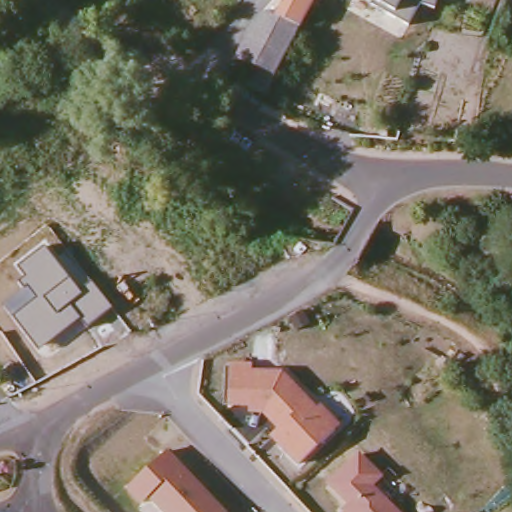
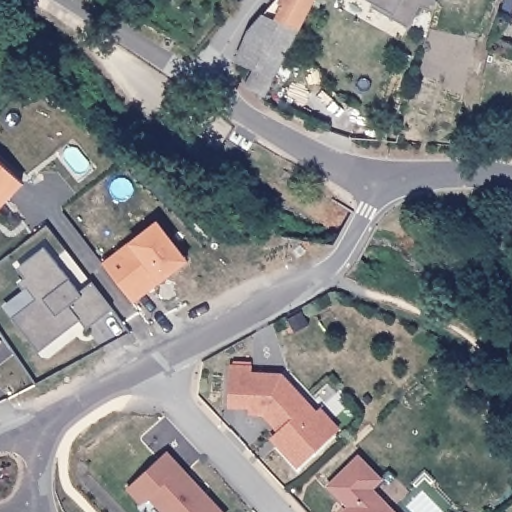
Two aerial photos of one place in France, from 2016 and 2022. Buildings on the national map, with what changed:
unchanged [(280,0),(315,0),(302,25),(275,11),(280,0)]
new [(417,4),(405,25),(368,4),(370,0),(434,0),(431,9),(417,4)]
unchanged [(246,87),(253,68),(240,64),(237,54),(246,34),(267,7),(275,11),(302,25),(266,96),(246,87)]
new [(0,206),(0,162),(22,183),(0,206)]
new [(132,303),(100,263),(130,242),(158,220),(188,261),(132,303)]
unchanged [(86,326),(80,319),(39,351),(13,317),(2,305),(22,288),(18,281),(24,276),(17,267),(45,246),(70,278),(78,290),(92,280),(111,307),(86,326)]
unchanged [(272,438),(280,431),(266,415),(250,414),(250,407),(228,405),(230,365),(255,365),(255,371),(286,373),(320,410),(323,406),(343,427),(300,467),(272,438)]
unchanged [(151,497),(143,504),(128,489),(170,450),(226,512),(164,512),(151,497)]
unchanged [(350,506),(328,485),(361,453),(385,477),(376,488),(400,512),(344,512),(350,506)]

